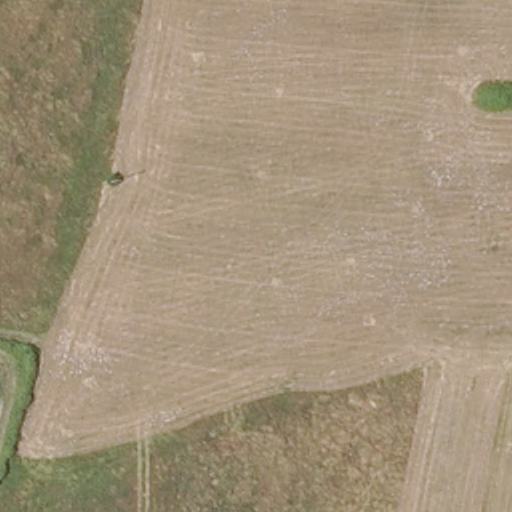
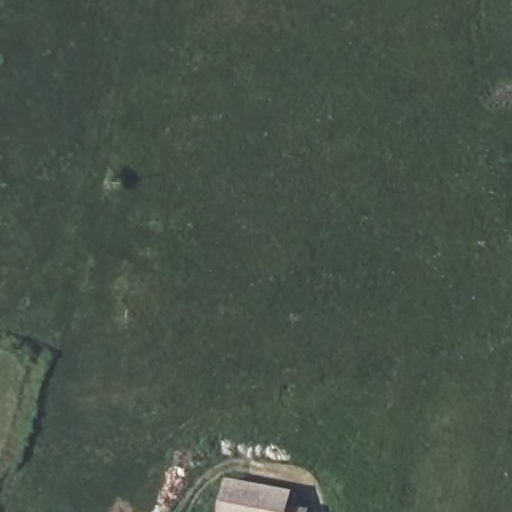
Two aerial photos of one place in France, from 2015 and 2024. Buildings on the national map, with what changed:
new [(229,476),(296,488),(293,505),(311,508),(310,512),(223,512),(229,476)]

